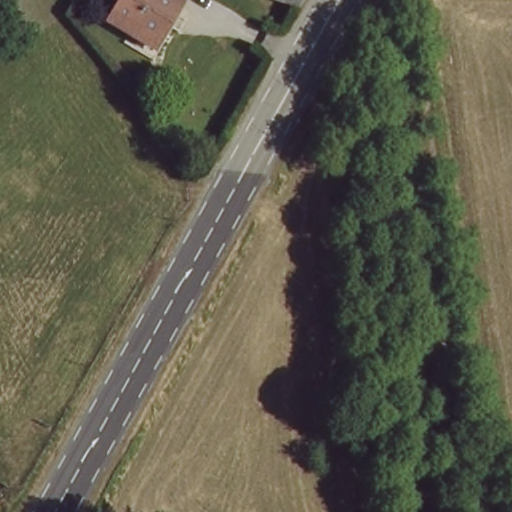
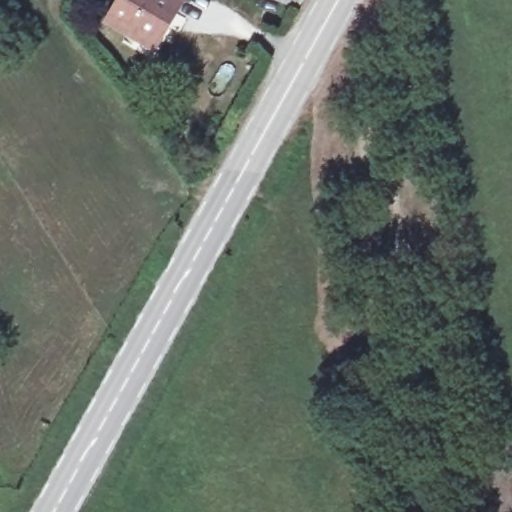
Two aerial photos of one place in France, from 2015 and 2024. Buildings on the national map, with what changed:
unchanged [(167,8),(151,37),(138,29),(114,14),(122,0),(184,0),(182,4),(177,13),(167,8)]

